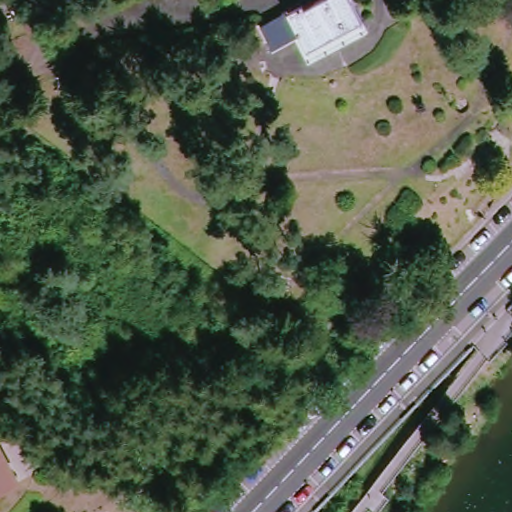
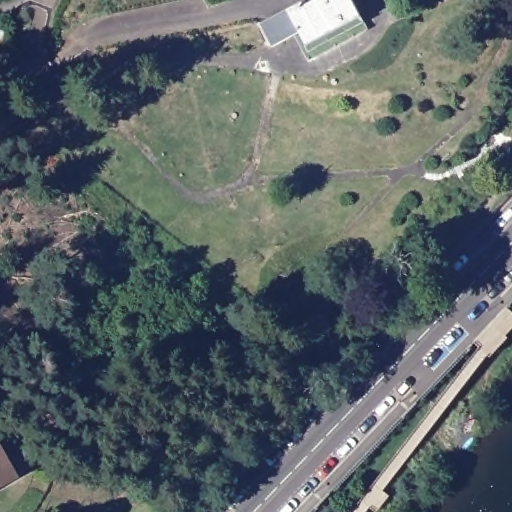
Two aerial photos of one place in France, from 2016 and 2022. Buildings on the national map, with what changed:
unchanged [(294,31),(272,43),(263,24),(299,5),(301,9),(320,0),(347,0),(351,8),(348,9),(361,35),(309,61),(294,31)]
unchanged [(13,478),(0,485),(0,451),(13,478)]

